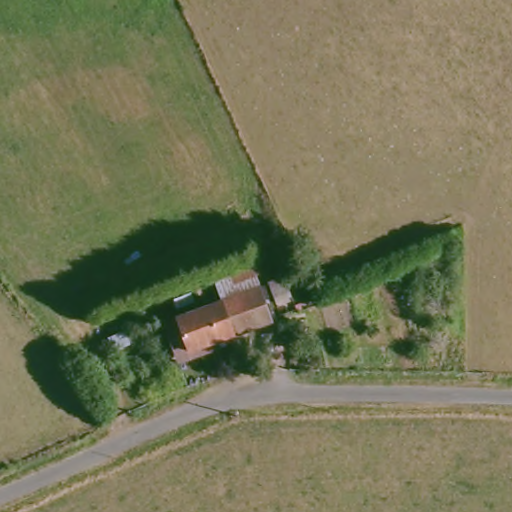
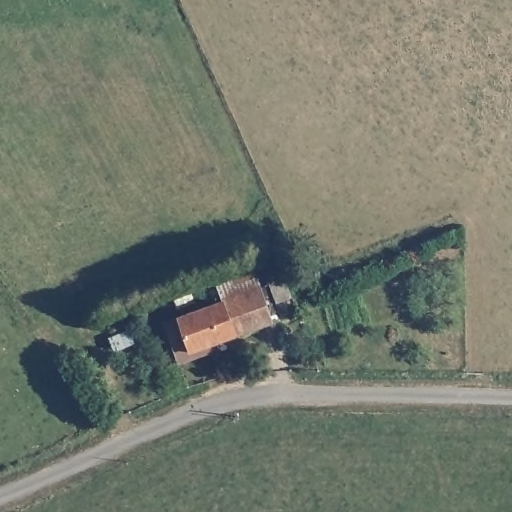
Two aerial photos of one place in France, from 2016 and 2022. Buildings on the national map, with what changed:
unchanged [(256,288),(270,328),(232,338),(187,355),(174,365),(157,324),(175,318),(219,301),(208,276),(247,262),(256,288)]

